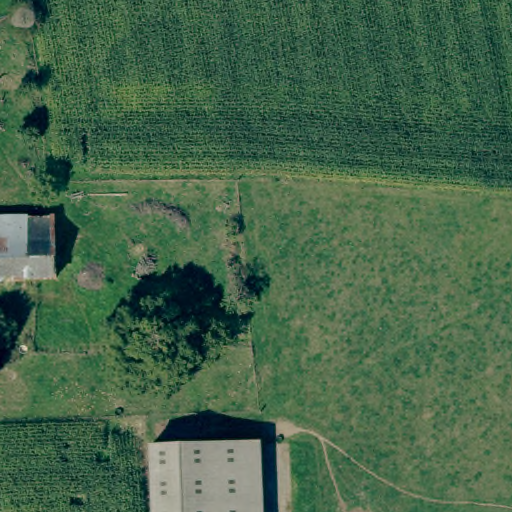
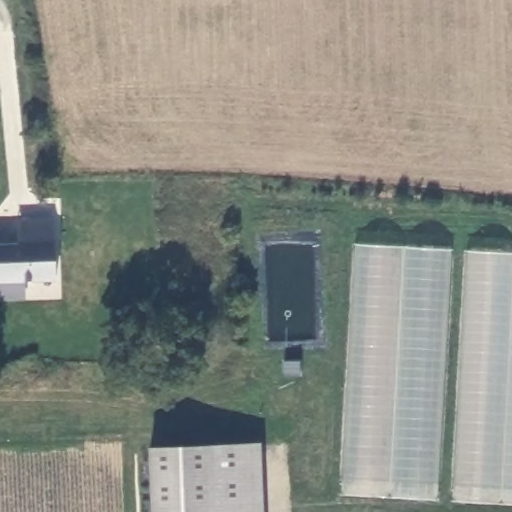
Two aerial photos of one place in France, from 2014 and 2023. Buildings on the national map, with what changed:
new [(54,238),(17,239),(15,219),(52,217),(54,238)]
unchanged [(0,280),(0,240),(54,238),(55,279),(0,280)]
new [(436,500),(341,495),(355,244),(450,248),(436,500)]
new [(466,250),(512,252),(512,505),(450,502),(466,250)]
unchanged [(152,512),(150,445),(260,442),(262,512),(152,512)]

